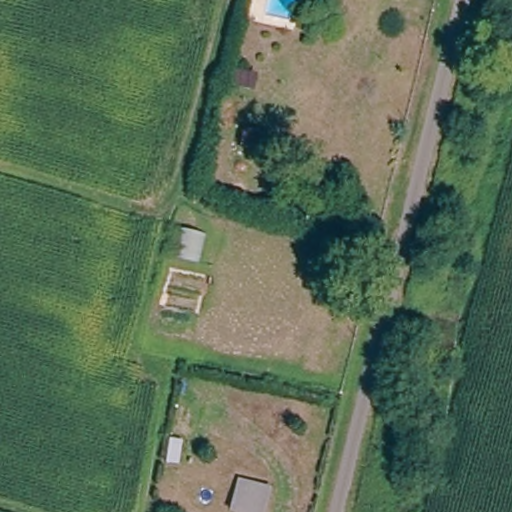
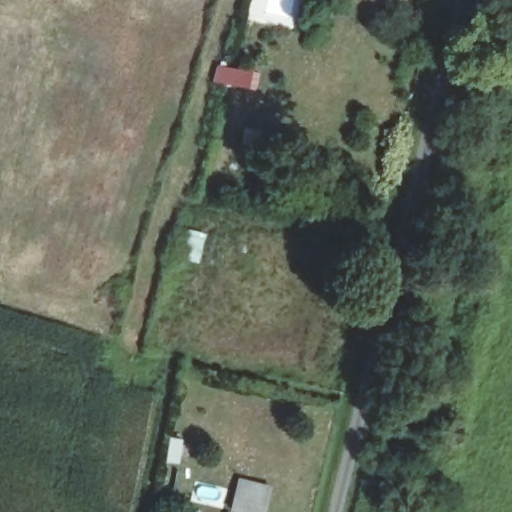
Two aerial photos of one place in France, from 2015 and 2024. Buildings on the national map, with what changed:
unchanged [(272,488),(265,512),(239,512),(233,511),(240,481),(272,488)]

